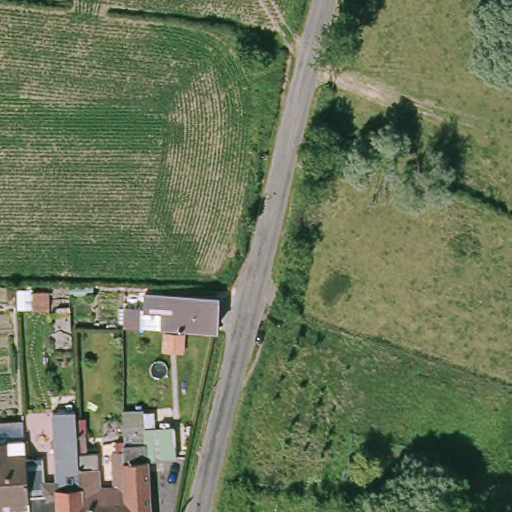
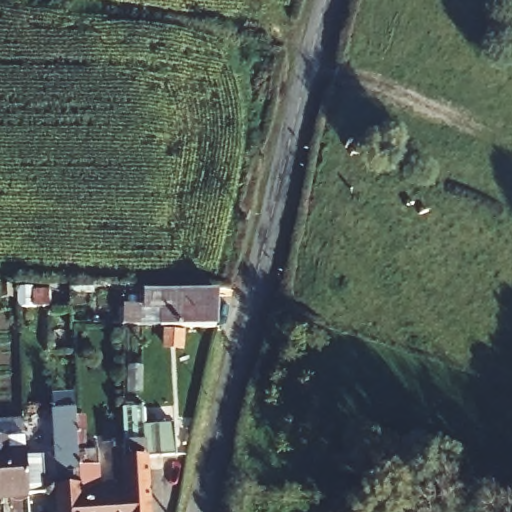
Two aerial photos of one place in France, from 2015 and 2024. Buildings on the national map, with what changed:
unchanged [(161,293),(216,295),(215,330),(160,327),(161,293)]
unchanged [(122,326),(125,307),(134,307),(132,326),(122,326)]
unchanged [(177,338),(177,350),(160,350),(161,337),(177,338)]
unchanged [(79,512),(55,512),(51,449),(50,418),(72,418),(75,455),(79,512)]
unchanged [(0,442),(0,423),(20,421),(20,440),(0,442)]
unchanged [(143,430),(175,428),(176,461),(144,463),(145,512),(122,512),(122,510),(121,466),(121,452),(120,446),(143,446),(143,430)]
unchanged [(25,497),(25,500),(0,502),(0,442),(20,440),(22,461),(40,460),(42,495),(25,497)]
unchanged [(98,488),(112,488),(110,453),(121,452),(121,466),(122,510),(122,512),(79,512),(75,455),(96,453),(98,488)]

